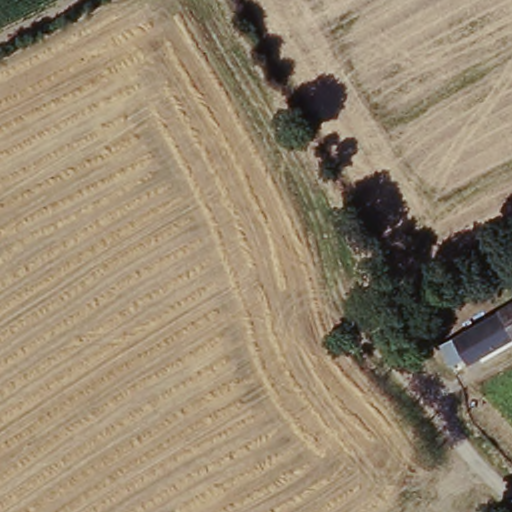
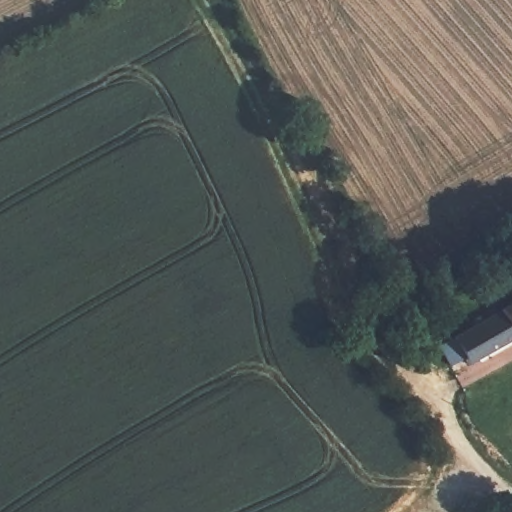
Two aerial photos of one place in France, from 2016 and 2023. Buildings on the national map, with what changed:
unchanged [(473,350),(455,361),(448,349),(510,311),(512,310),(512,339),(477,360),(473,350)]

